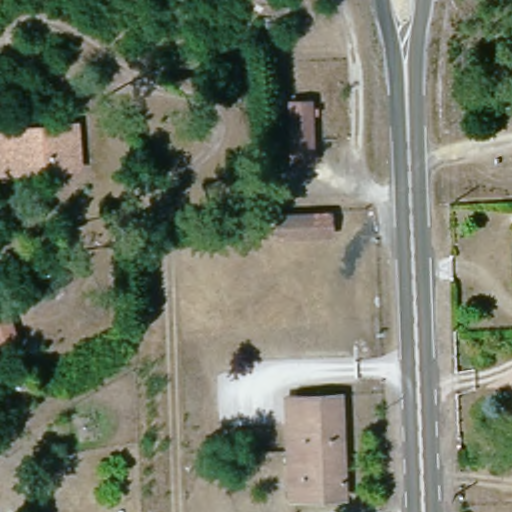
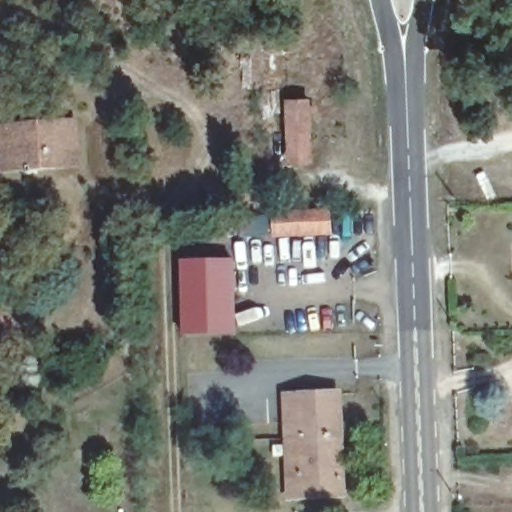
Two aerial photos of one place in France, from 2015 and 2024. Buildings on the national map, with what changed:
unchanged [(288,159),(288,98),(310,99),(310,159),(288,159)]
unchanged [(73,115),(80,160),(59,165),(58,153),(15,159),(11,125),(73,115)]
unchanged [(15,159),(58,153),(59,165),(2,173),(0,160),(0,126),(11,125),(15,159)]
unchanged [(274,237),(273,209),(327,208),(328,237),(274,237)]
new [(182,335),(181,260),(233,260),(236,336),(182,335)]
demolished [(303,323),(303,299),(319,298),(320,323),(303,323)]
unchanged [(9,367),(0,343),(26,334),(33,356),(38,370),(14,380),(9,367)]
unchanged [(341,495),(287,495),(286,483),(284,394),(295,395),(338,393),(341,495)]

